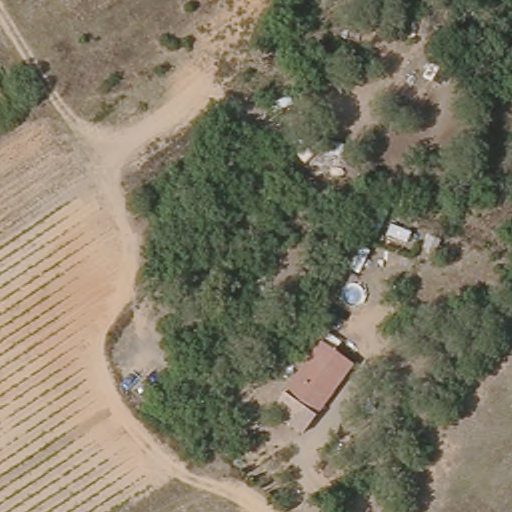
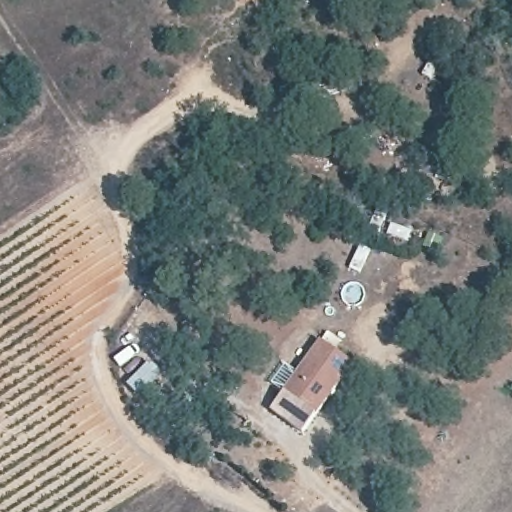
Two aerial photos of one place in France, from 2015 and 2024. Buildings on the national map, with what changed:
unchanged [(317,421),(286,402),(281,398),(312,347),(320,352),(349,371),(317,421)]

